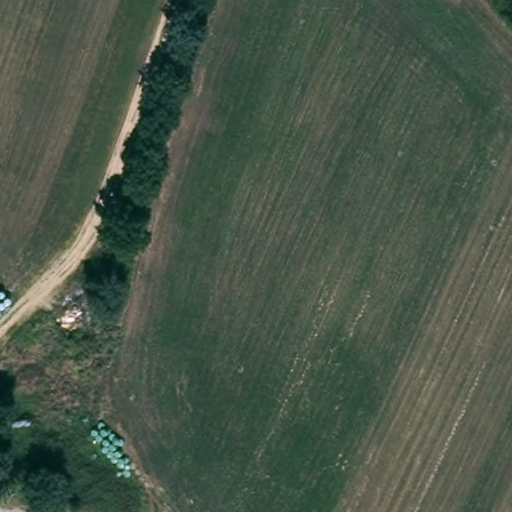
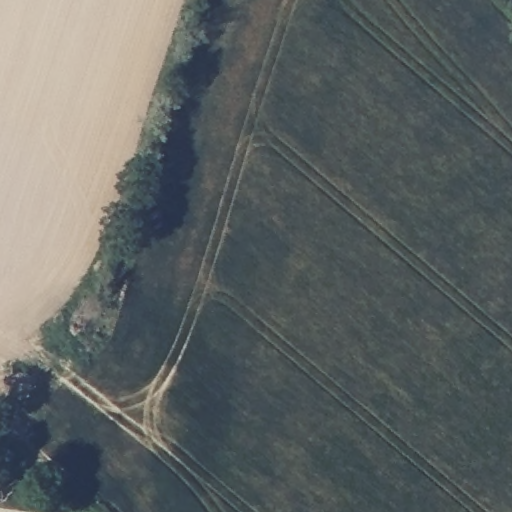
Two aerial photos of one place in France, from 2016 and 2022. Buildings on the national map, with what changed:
[]

